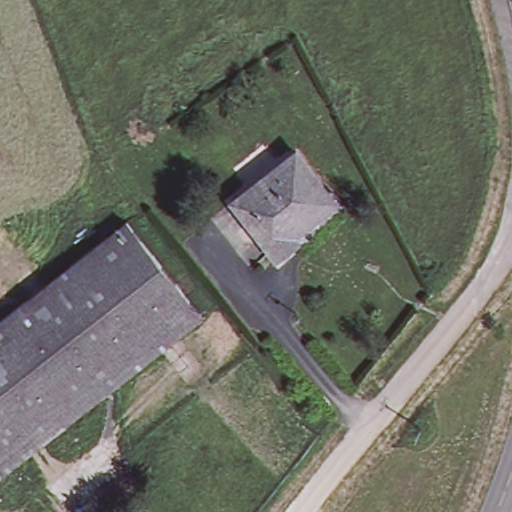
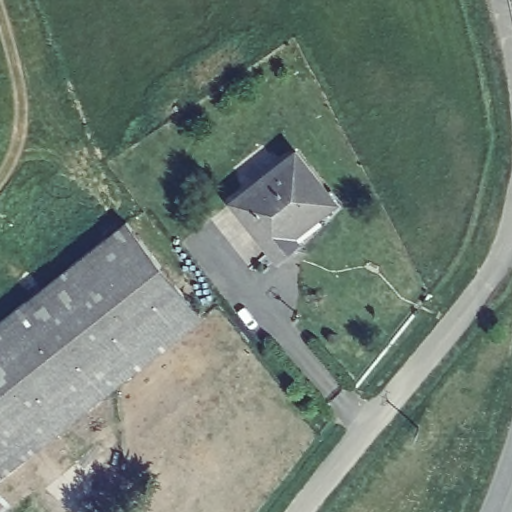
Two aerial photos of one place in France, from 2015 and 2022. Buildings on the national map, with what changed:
unchanged [(336,207),(332,210),(325,201),(285,232),(291,241),(271,258),(228,202),(291,151),(336,207)]
unchanged [(0,320),(128,217),(203,311),(0,475),(0,320)]

